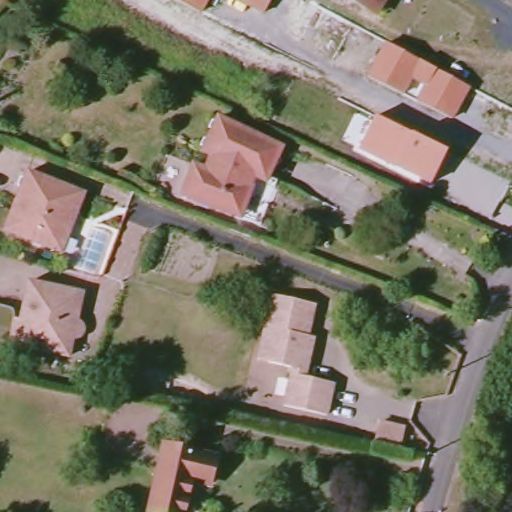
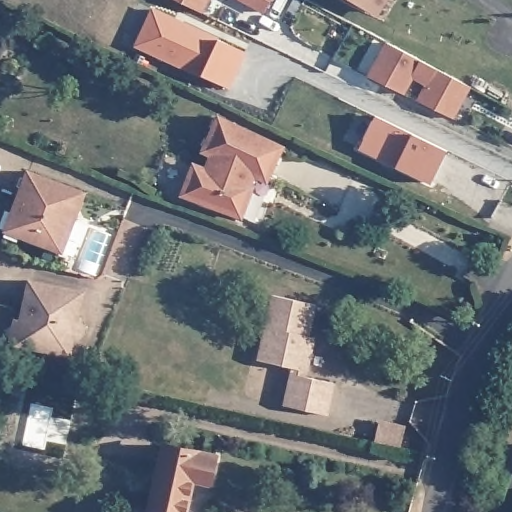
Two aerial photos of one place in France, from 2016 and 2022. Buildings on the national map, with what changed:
unchanged [(200,14),(174,0),(207,0),(200,14)]
unchanged [(265,15),(239,0),(273,0),(265,15)]
unchanged [(380,20),(353,0),(392,0),(380,20)]
new [(182,27),(245,55),(229,92),(136,50),(152,13),(175,23),(182,27)]
unchanged [(471,89),(455,119),(416,99),(423,86),(413,81),(405,97),(366,76),(387,42),(471,89)]
unchanged [(282,144),(267,182),(254,176),(250,184),(255,185),(243,217),(183,194),(195,162),(207,167),(212,153),(205,149),(218,115),(282,144)]
unchanged [(446,151),(431,182),(358,149),(375,116),(446,151)]
unchanged [(11,227),(15,217),(32,170),(81,189),(72,214),(79,216),(71,235),(67,248),(11,227)]
unchanged [(86,299),(82,314),(76,339),(70,360),(11,344),(17,324),(22,326),(22,325),(30,300),(33,285),(86,299)]
unchanged [(260,358),(263,348),(267,332),(275,302),(276,295),(317,304),(315,315),(308,343),(307,349),(315,351),(310,370),(308,381),(335,387),(332,400),(328,419),(275,407),(280,387),(284,370),(272,368),(259,364),(260,358)]
unchanged [(401,430),(396,450),(372,445),(376,425),(401,430)]
unchanged [(212,479),(195,475),(187,512),(153,512),(155,506),(153,506),(168,442),(218,453),(212,479)]

